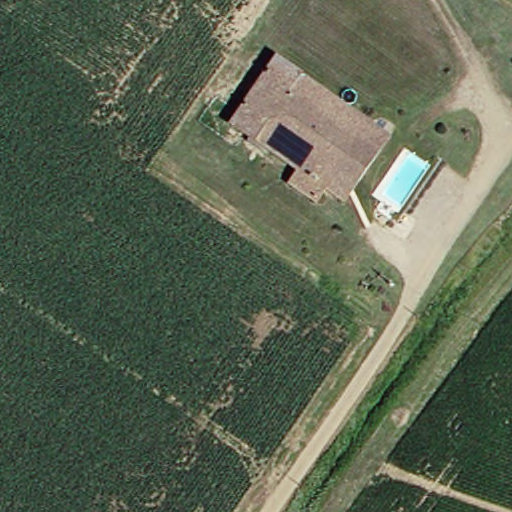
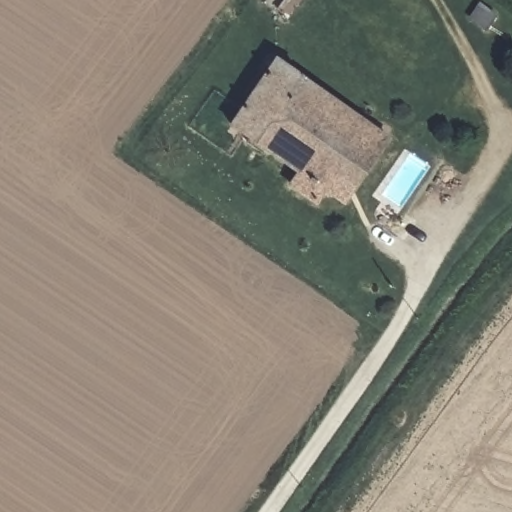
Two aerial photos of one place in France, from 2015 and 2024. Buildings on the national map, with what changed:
unchanged [(363,120),(321,182),(311,197),(285,179),(293,166),(227,119),(271,58),(363,120)]
unchanged [(363,120),(381,130),(338,194),(321,182),(363,120)]

